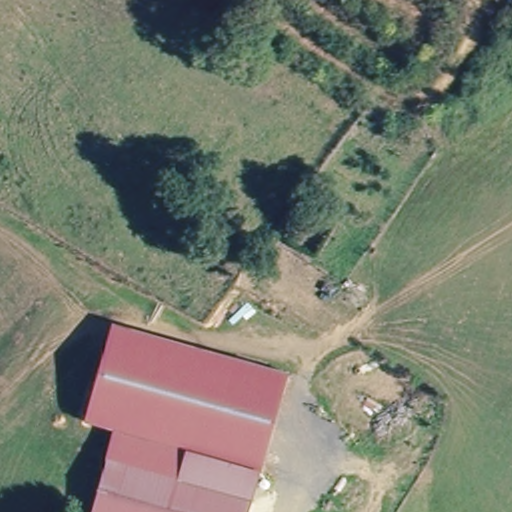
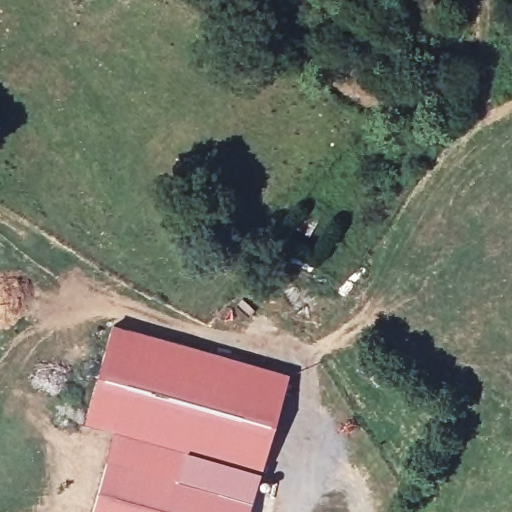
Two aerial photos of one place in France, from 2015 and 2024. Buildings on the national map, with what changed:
unchanged [(251,512),(91,512),(113,430),(85,423),(112,323),(290,373),(251,512)]

